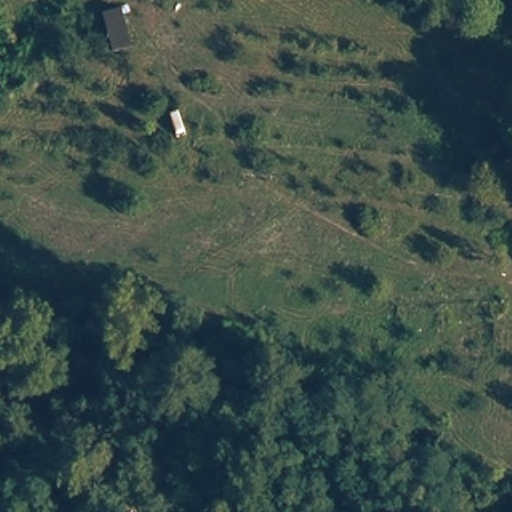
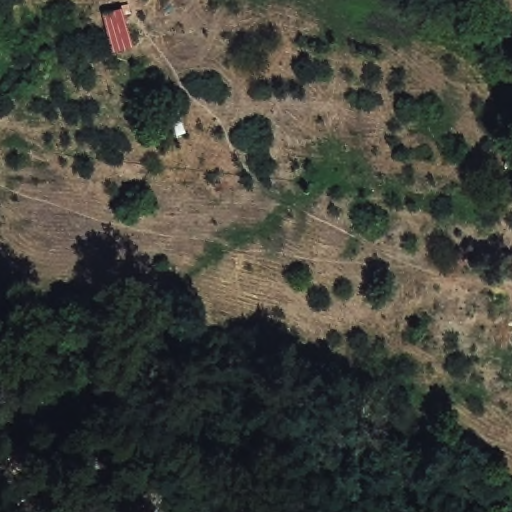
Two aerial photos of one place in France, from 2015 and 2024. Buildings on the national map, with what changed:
unchanged [(132,45),(112,50),(101,11),(122,4),(132,45)]

